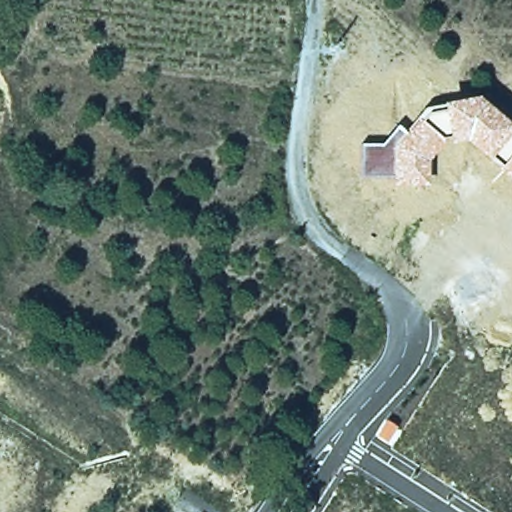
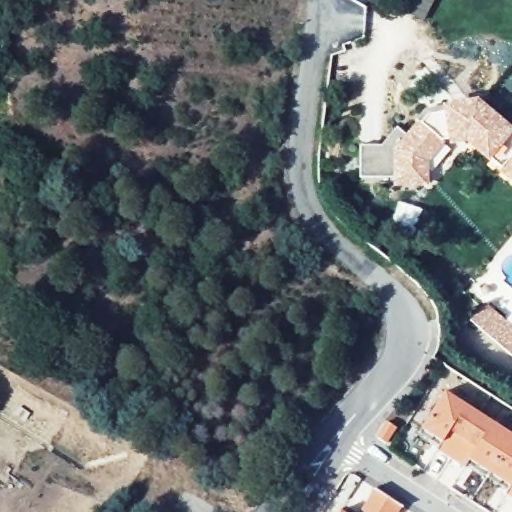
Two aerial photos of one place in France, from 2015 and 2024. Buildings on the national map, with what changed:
unchanged [(396,125),(405,133),(427,105),(479,99),(512,128),(512,183),(465,142),(442,147),(428,161),(427,187),(392,188),(391,175),(360,176),(362,145),(380,146),(396,125)]
new [(484,304),(512,327),(512,354),(470,321),(484,304)]
new [(465,467),(437,450),(442,441),(421,429),(443,392),(492,421),(470,460),(465,467)]
new [(492,421),(512,434),(512,483),(510,485),(470,460),(492,421)]
new [(510,485),(512,483),(512,498),(505,493),(510,485)]
new [(400,506),(397,512),(359,512),(374,490),(400,506)]
new [(344,512),(339,512),(340,510),(344,512)]

